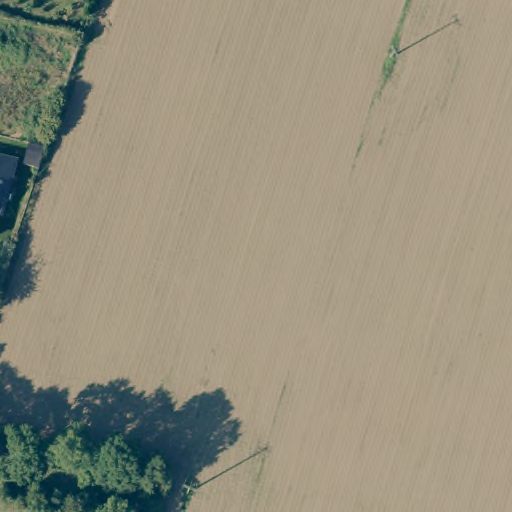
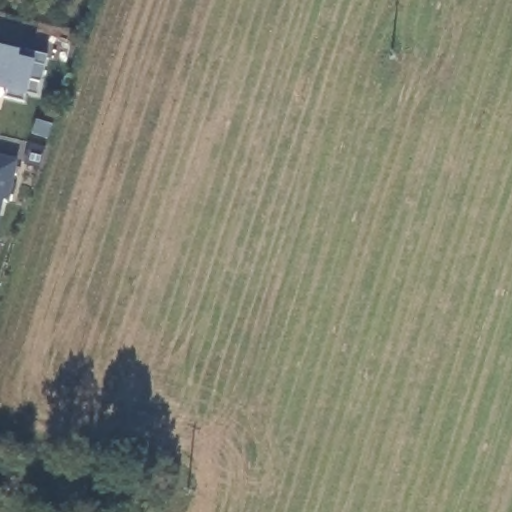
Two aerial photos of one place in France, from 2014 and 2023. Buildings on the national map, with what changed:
new [(9,91),(0,89),(0,46),(18,50),(47,57),(38,97),(26,95),(24,104),(6,98),(9,91)]
unchanged [(10,200),(3,199),(0,211),(0,151),(18,154),(10,200)]

